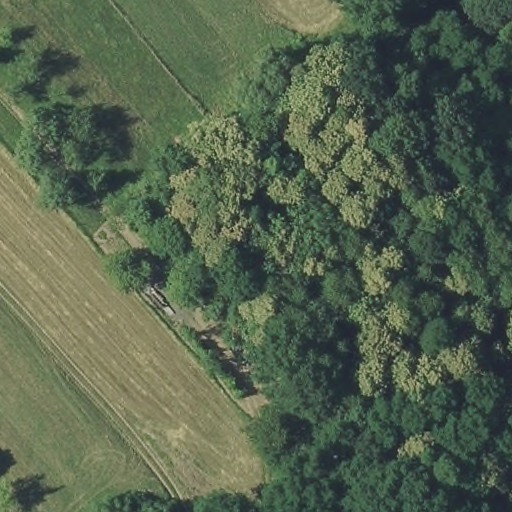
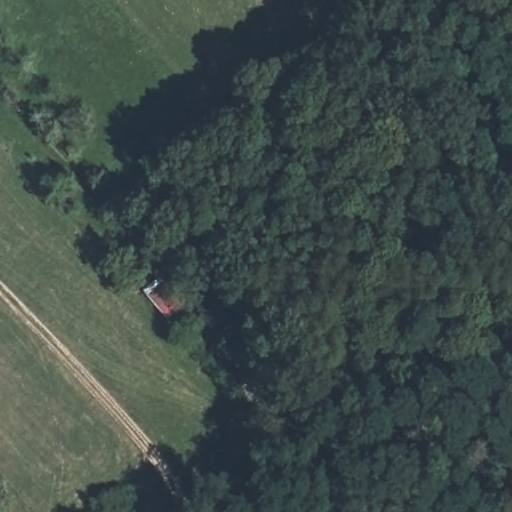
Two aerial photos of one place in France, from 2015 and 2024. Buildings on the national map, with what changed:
unchanged [(346,455),(327,473),(312,456),(329,442),(333,439),(346,455)]

